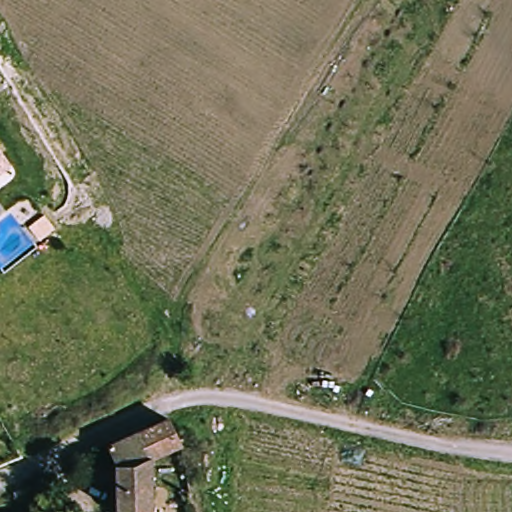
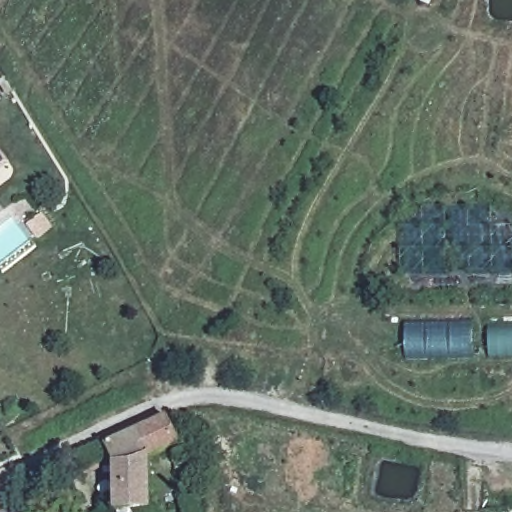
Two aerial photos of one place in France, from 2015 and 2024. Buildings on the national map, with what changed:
unchanged [(7,164),(0,169),(0,156),(7,164)]
new [(472,322),(472,355),(405,356),(405,324),(472,322)]
unchanged [(135,466),(126,451),(115,457),(110,449),(167,423),(181,444),(151,458),(135,466)]
unchanged [(158,507),(120,512),(115,457),(126,451),(135,466),(151,458),(158,507)]

